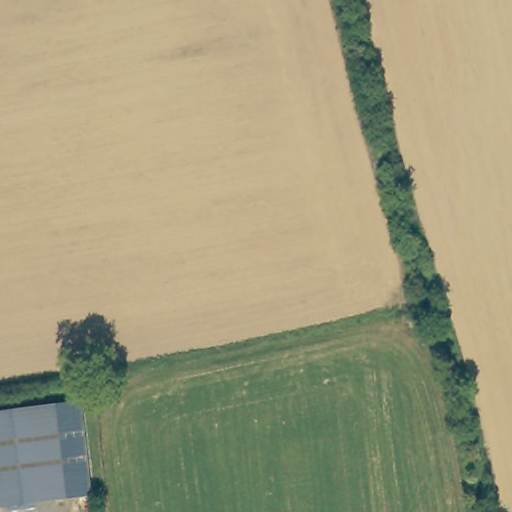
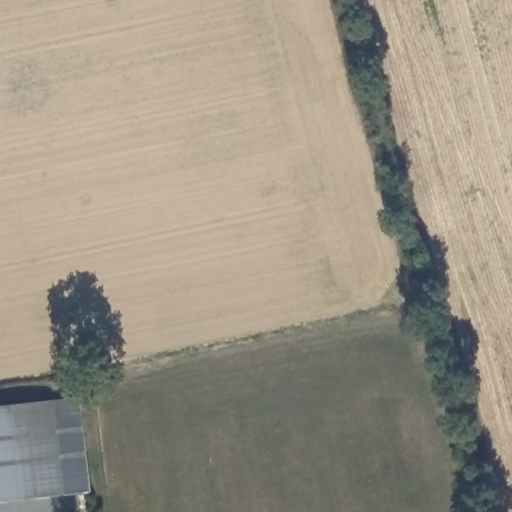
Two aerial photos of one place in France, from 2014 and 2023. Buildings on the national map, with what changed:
unchanged [(90,497),(0,508),(0,411),(79,402),(90,497)]

